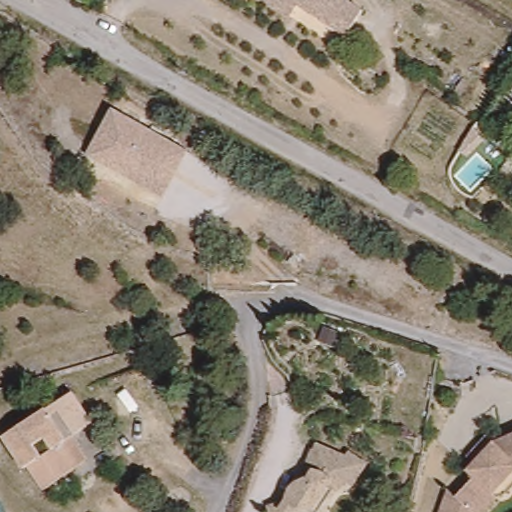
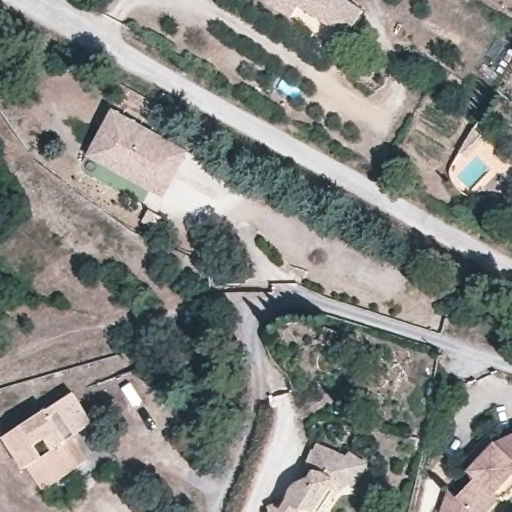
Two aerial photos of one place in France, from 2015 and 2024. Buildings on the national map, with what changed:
unchanged [(335,25),(301,3),(292,15),(269,0),(350,0),(364,10),(352,28),(348,34),(335,25)]
unchanged [(174,144),(152,184),(109,160),(106,166),(86,155),(111,110),(174,144)]
unchanged [(109,160),(152,184),(174,144),(187,151),(162,196),(106,166),(109,160)]
unchanged [(120,453),(99,466),(92,455),(47,485),(31,461),(27,464),(6,431),(50,402),(51,405),(78,387),(120,453)]
unchanged [(492,501),(483,512),(435,512),(442,492),(451,500),(470,480),(463,475),(470,467),(463,460),(482,440),(489,447),(512,437),(512,486),(500,500),(492,501)]
unchanged [(274,503),(288,498),(289,493),(293,488),(297,484),(299,482),(301,481),(313,451),(315,452),(318,447),(344,459),(348,455),(366,468),(351,488),(346,487),(339,492),(332,498),(328,501),(319,512),(270,512),(269,505),(274,503)]

